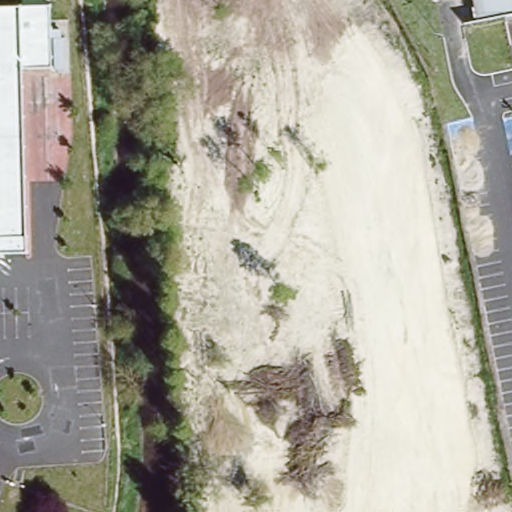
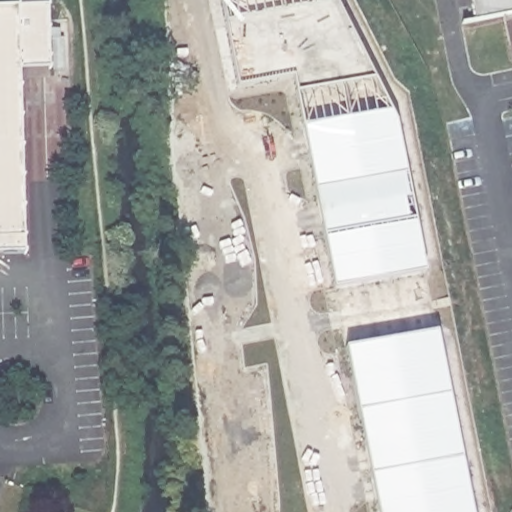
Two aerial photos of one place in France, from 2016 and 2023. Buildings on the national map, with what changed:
unchanged [(21,0),(48,0),(47,7),(50,68),(20,69),(27,257),(0,257),(0,5),(21,4),(21,0)]
new [(335,289),(295,78),(239,88),(221,0),(335,0),(398,124),(427,268),(335,289)]
unchanged [(484,18),(480,0),(512,0),(512,12),(484,18)]
new [(439,332),(475,512),(379,512),(347,351),(439,332)]

